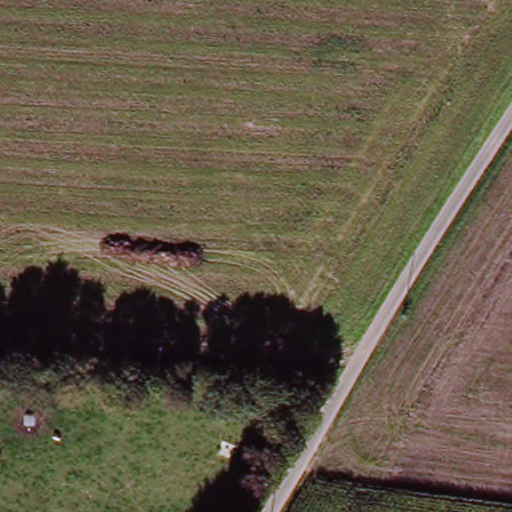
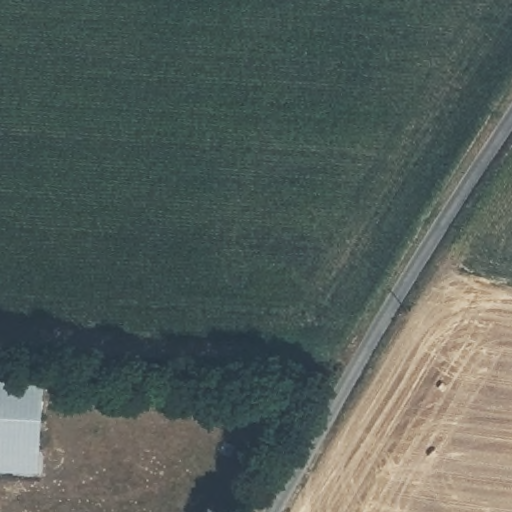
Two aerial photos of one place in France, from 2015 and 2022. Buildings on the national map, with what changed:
new [(40,468),(0,465),(0,376),(42,379),(40,468)]

